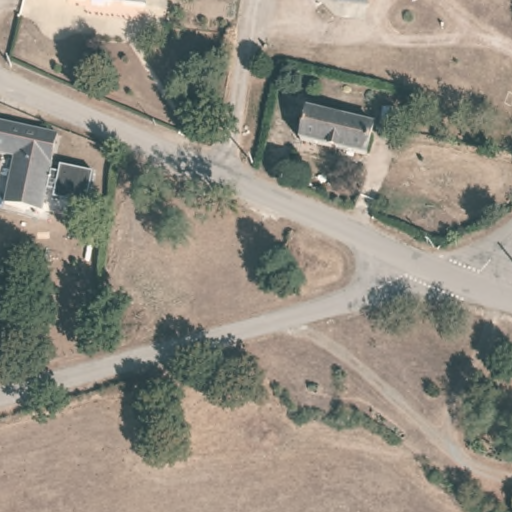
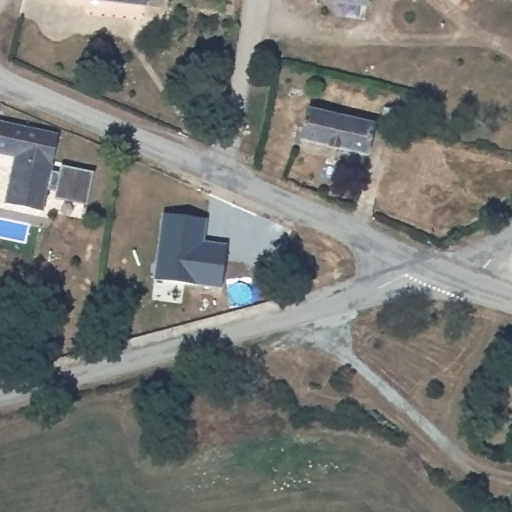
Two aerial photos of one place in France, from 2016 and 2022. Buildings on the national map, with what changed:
unchanged [(102,0),(155,0),(154,6),(102,0)]
unchanged [(363,0),(372,0),(372,1),(363,0)]
unchanged [(397,136),(377,133),(377,125),(380,109),(399,114),(397,136)]
unchanged [(371,160),(301,145),(309,111),(377,129),(376,133),(371,160)]
unchanged [(43,215),(5,209),(13,160),(0,158),(0,128),(55,139),(43,215)]
new [(154,280),(162,213),(208,218),(204,242),(227,245),(222,288),(154,280)]

